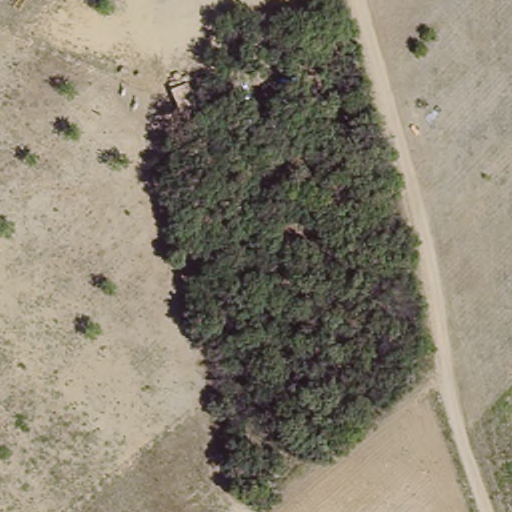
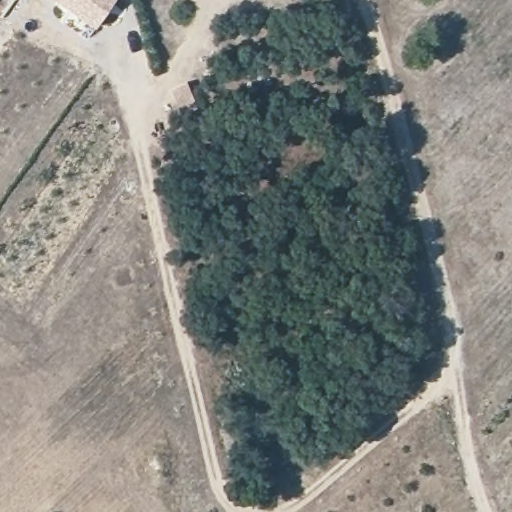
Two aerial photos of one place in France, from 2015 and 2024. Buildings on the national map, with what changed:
new [(96,27),(92,23),(82,36),(61,21),(71,7),(61,0),(115,0),(96,27)]

